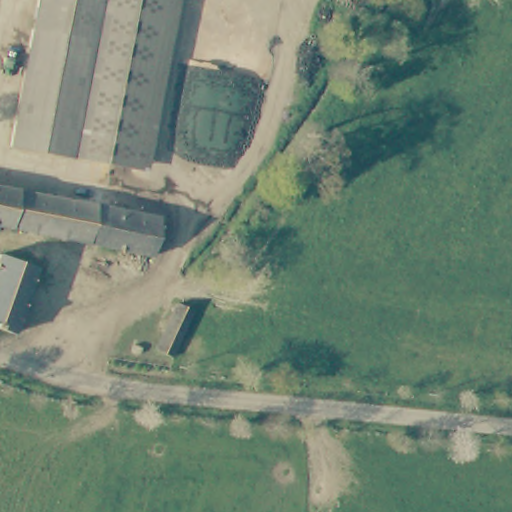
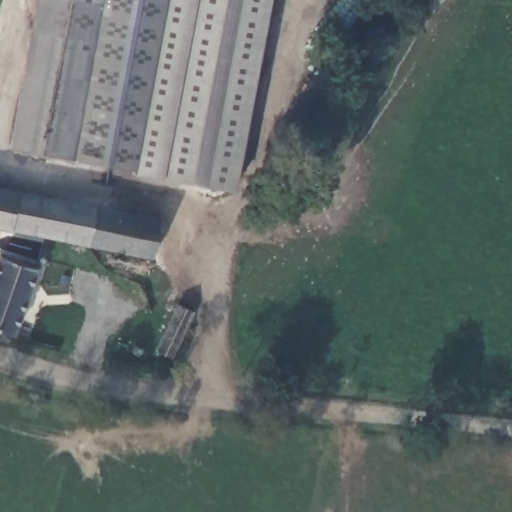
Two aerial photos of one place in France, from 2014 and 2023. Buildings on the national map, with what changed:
unchanged [(44,0),(167,0),(100,166),(15,153),(44,0)]
unchanged [(100,166),(167,0),(170,0),(138,173),(100,166)]
new [(170,0),(272,0),(235,192),(138,173),(170,0)]
unchanged [(0,227),(0,185),(161,218),(155,257),(101,246),(51,237),(0,227)]
unchanged [(25,305),(12,339),(0,334),(0,263),(2,257),(38,269),(25,305)]
unchanged [(155,344),(176,299),(195,308),(173,353),(155,344)]

